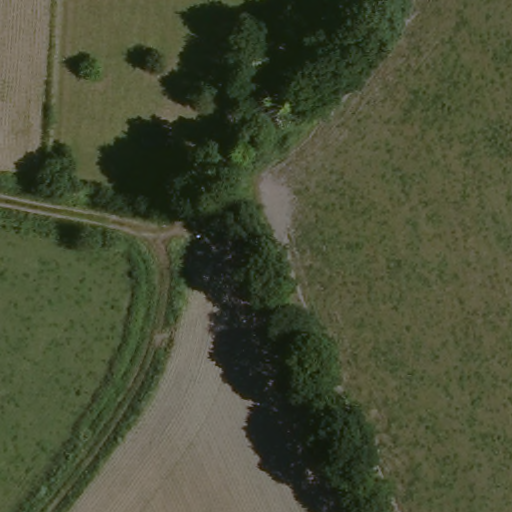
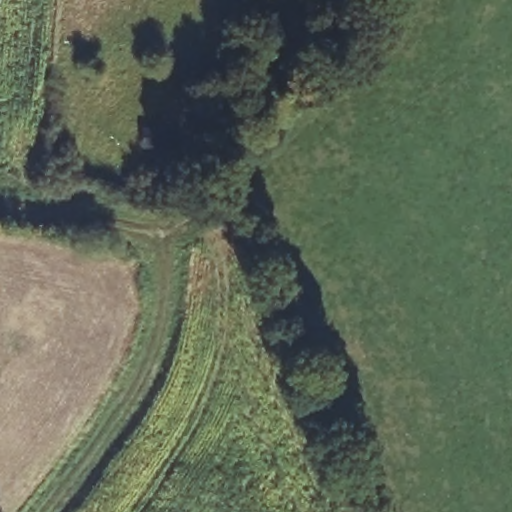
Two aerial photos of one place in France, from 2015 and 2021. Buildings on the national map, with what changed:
[]

